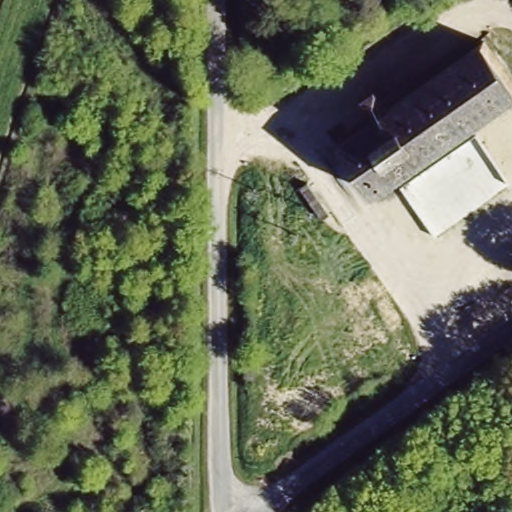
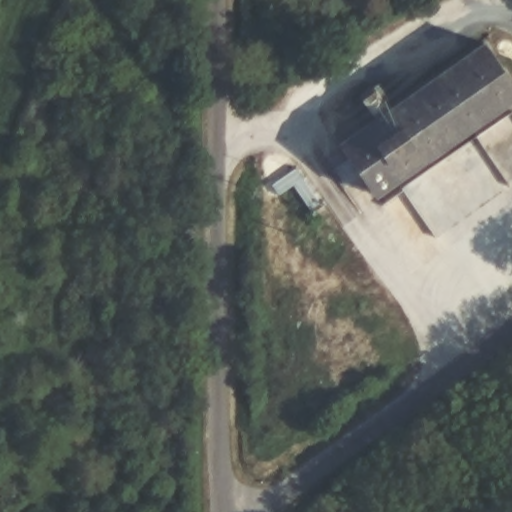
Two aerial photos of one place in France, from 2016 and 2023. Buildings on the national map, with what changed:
unchanged [(512,84),(512,98),(375,196),(340,147),(482,44),(484,42),(512,84)]
unchanged [(331,218),(324,222),(300,190),(307,185),(331,218)]

